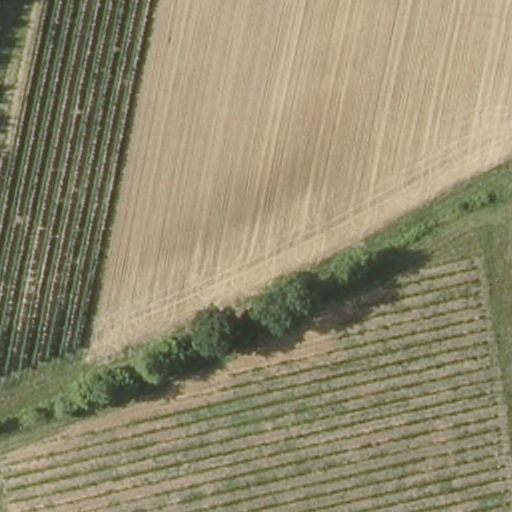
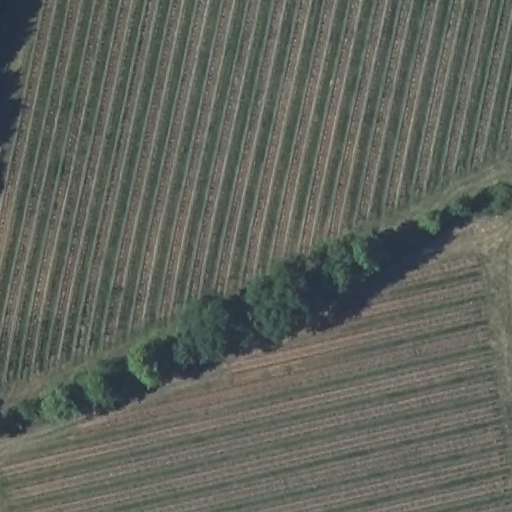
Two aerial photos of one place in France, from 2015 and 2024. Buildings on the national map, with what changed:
[]

